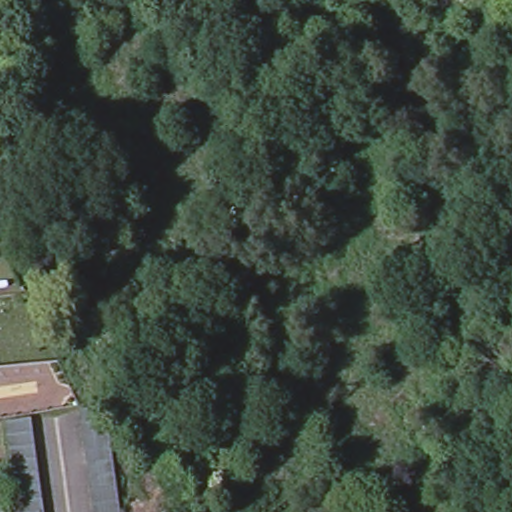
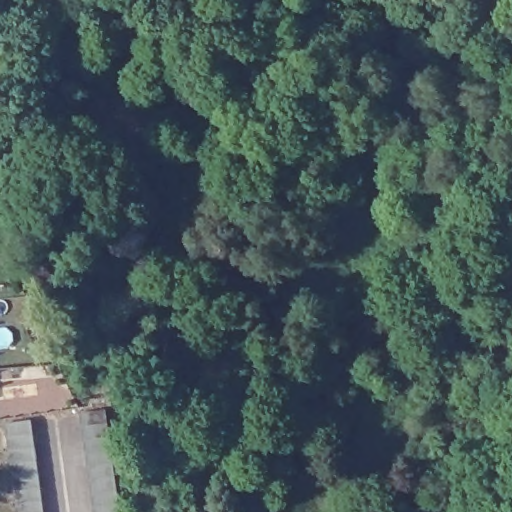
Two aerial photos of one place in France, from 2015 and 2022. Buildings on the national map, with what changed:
unchanged [(109,405),(129,512),(103,512),(84,409),(109,405)]
unchanged [(4,424),(20,421),(30,419),(34,438),(42,485),(46,512),(20,512),(7,437),(4,424)]

